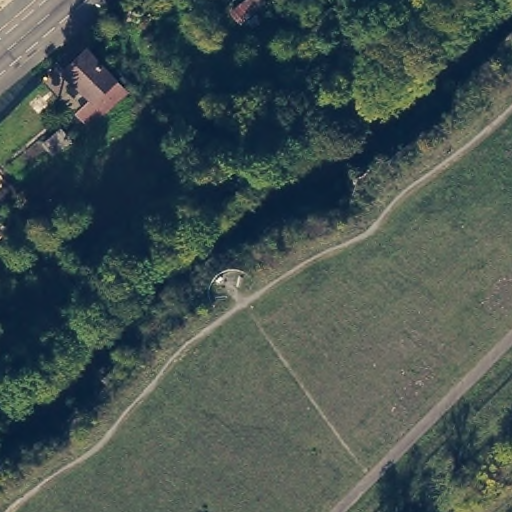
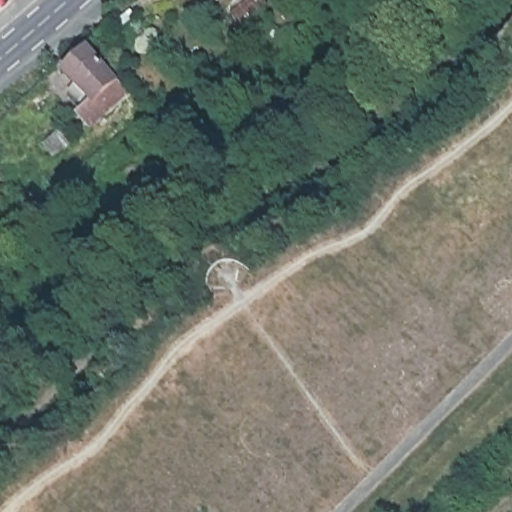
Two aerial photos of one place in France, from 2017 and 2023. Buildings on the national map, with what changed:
unchanged [(266,3),(239,26),(231,16),(243,7),(251,0),(263,0),(266,3)]
unchanged [(97,50),(133,91),(98,125),(88,115),(94,109),(78,92),(85,83),(74,72),(97,50)]
unchanged [(43,146),(61,130),(71,142),(53,157),(43,146)]

